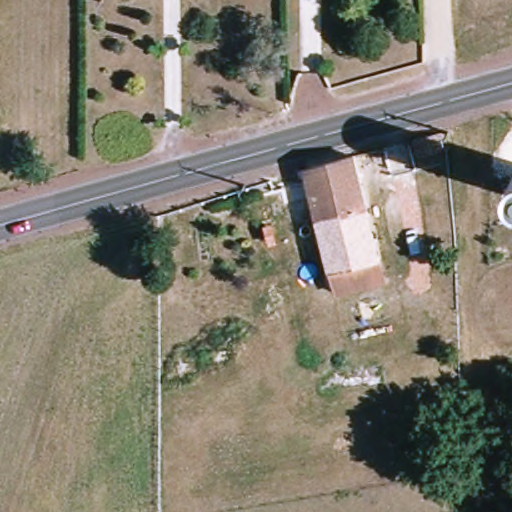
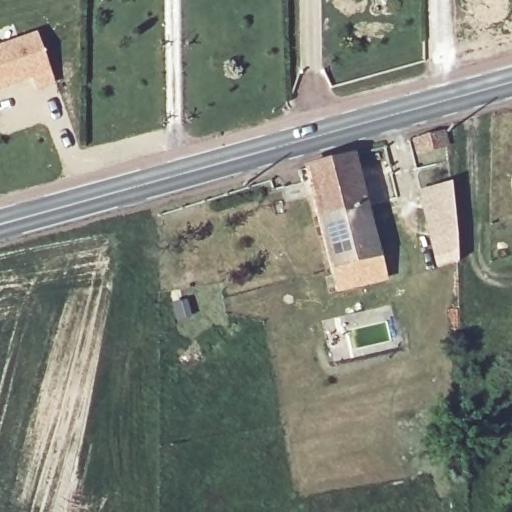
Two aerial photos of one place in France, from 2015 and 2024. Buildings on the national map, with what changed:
new [(56,82),(36,91),(31,79),(0,90),(0,44),(37,31),(56,82)]
unchanged [(450,142),(419,152),(415,137),(448,127),(450,142)]
unchanged [(336,293),(332,276),(328,265),(322,241),(302,172),(352,158),(381,261),(386,278),(336,293)]
new [(420,190),(447,184),(465,262),(436,267),(420,190)]

